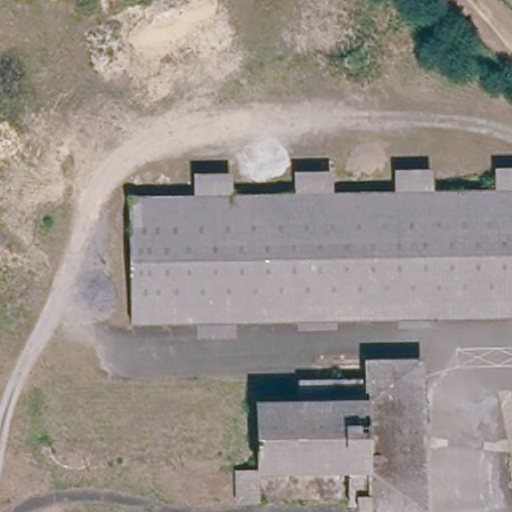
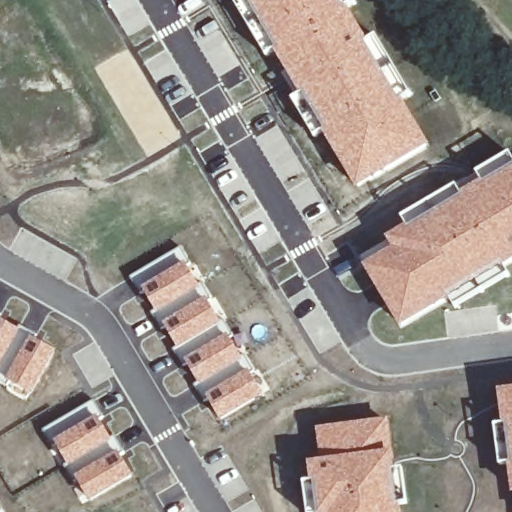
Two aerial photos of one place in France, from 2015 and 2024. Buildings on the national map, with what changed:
new [(349,9),(368,41),(377,36),(411,95),(402,100),(431,149),(357,190),(323,133),(315,139),(292,100),(301,95),(275,52),(266,58),(232,0),(354,0),(356,4),(349,9)]
new [(394,249),(387,239),(406,227),(401,219),(457,185),(462,194),(482,183),(477,174),(510,154),(512,158),(512,264),(504,269),(508,275),(455,308),(450,300),(402,330),(364,268),(394,249)]
demolished [(512,190),(512,321),(134,325),(135,198),(512,190)]
new [(180,248),(191,264),(188,267),(200,286),(202,284),(212,300),(209,303),(221,323),(224,321),(234,337),(231,339),(243,359),(246,357),(255,373),(252,375),(264,396),(221,422),(208,399),(204,401),(195,385),(199,384),(186,363),(183,364),(173,351),(177,348),(164,326),(161,329),(153,314),(156,313),(143,290),(140,293),(131,278),(180,248)]
new [(0,318),(0,314),(1,314),(0,318)]
new [(21,327),(35,335),(34,339),(57,352),(32,396),(10,383),(8,386),(0,382),(0,319),(19,329),(21,327)]
demolished [(453,384),(454,398),(423,399),(424,427),(372,429),(371,478),(255,481),(255,409),(300,408),(300,388),(453,384)]
new [(510,462),(502,463),(497,428),(506,427),(499,391),(512,389),(512,476),(510,462)]
new [(71,450),(64,438),(100,417),(136,477),(91,503),(65,459),(71,450)]
new [(388,419),(395,457),(394,458),(396,469),(403,469),(407,504),(401,506),(401,512),(307,512),(304,483),(311,481),(309,463),(322,462),(317,428),(388,419)]
demolished [(359,503),(371,503),(371,512),(358,512),(359,508),(359,503)]

